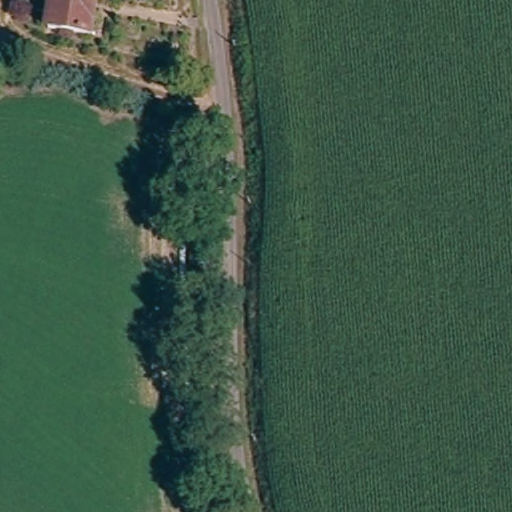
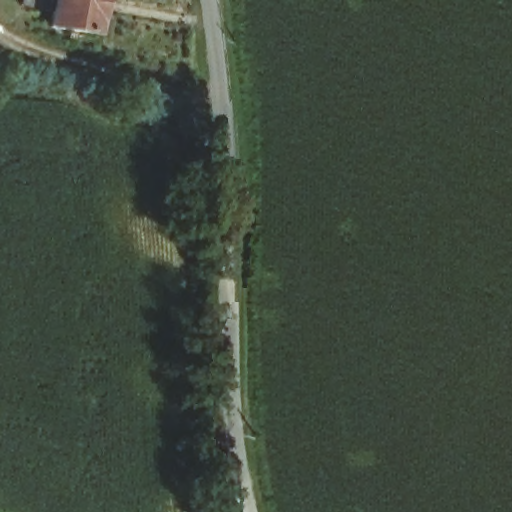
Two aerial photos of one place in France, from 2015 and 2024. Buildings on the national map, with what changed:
unchanged [(94,34),(55,25),(57,7),(28,0),(59,0),(101,0),(94,34)]

